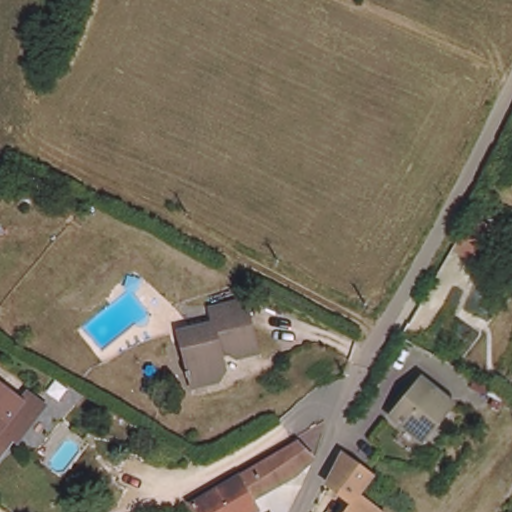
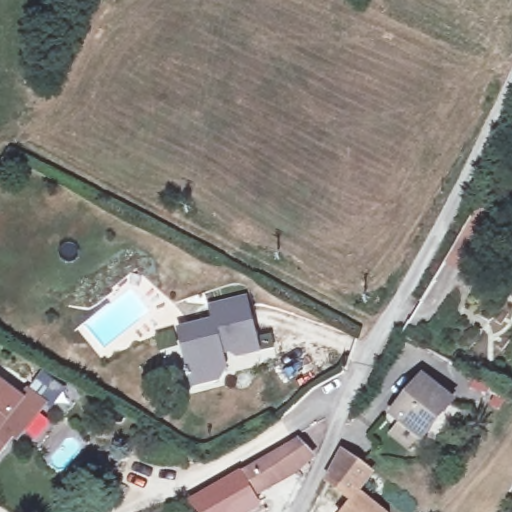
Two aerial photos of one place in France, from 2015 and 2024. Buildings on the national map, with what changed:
unchanged [(226,355),(230,374),(225,383),(196,390),(194,381),(190,383),(187,374),(191,373),(190,363),(203,360),(201,349),(194,350),(190,339),(195,330),(217,324),(214,310),(250,301),(262,354),(240,360),(233,357),(232,354),(226,355)]
unchanged [(45,398),(25,424),(0,456),(0,364),(35,390),(45,398)]
unchanged [(422,381),(455,406),(426,445),(392,420),(422,381)]
unchanged [(252,499),(257,506),(248,512),(202,512),(193,502),(295,441),(307,463),(252,499)]
unchanged [(330,478),(346,448),(375,473),(359,493),(356,497),(330,478)]
unchanged [(0,487),(0,477),(5,481),(0,487)]
unchanged [(359,493),(375,506),(382,512),(345,512),(356,497),(359,493)]

